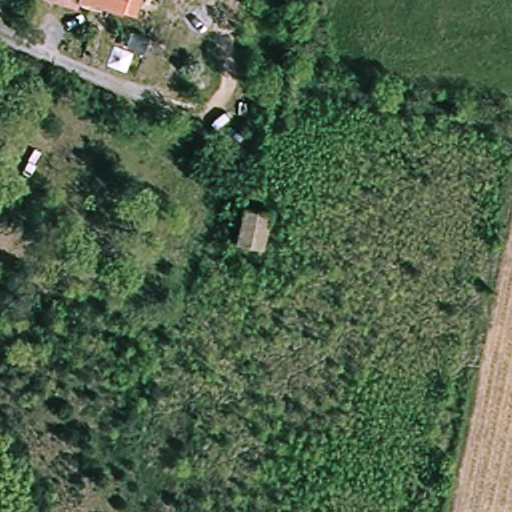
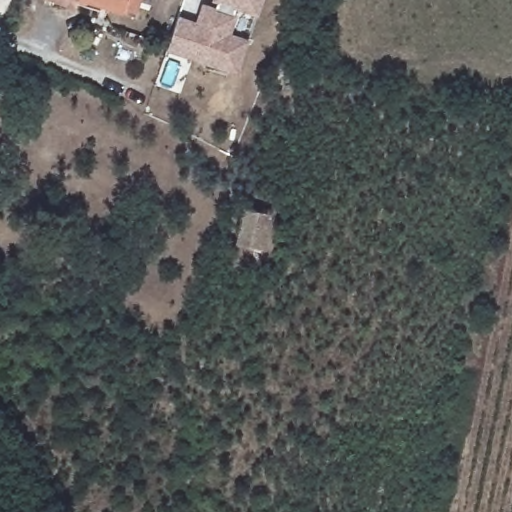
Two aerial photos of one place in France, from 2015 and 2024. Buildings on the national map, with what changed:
unchanged [(71,3),(62,0),(72,0),(71,3)]
unchanged [(128,12),(95,0),(133,0),(128,12)]
new [(196,25),(203,7),(214,11),(217,1),(214,0),(262,0),(257,14),(237,7),(227,36),(247,42),(236,73),(167,49),(177,19),(196,25)]
unchanged [(269,212),(260,250),(235,244),(243,207),(269,212)]

